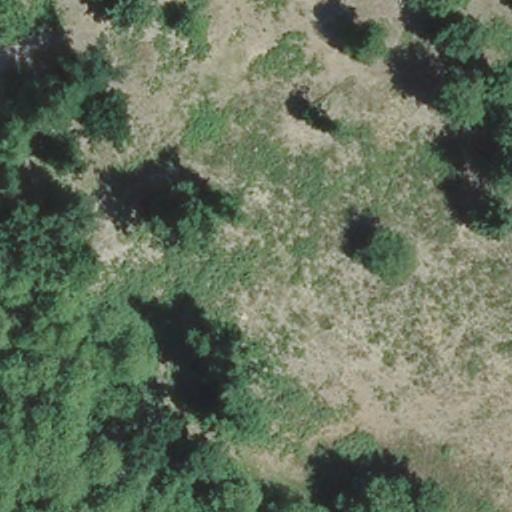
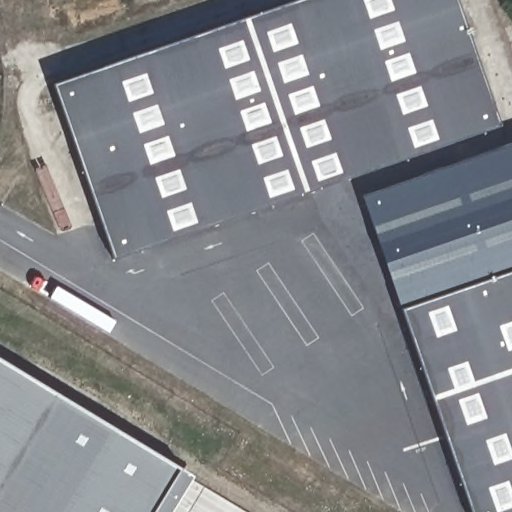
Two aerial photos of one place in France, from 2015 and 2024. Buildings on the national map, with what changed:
new [(54,84),(297,0),(454,0),(497,124),(113,258),(54,84)]
new [(475,512),(406,306),(372,195),(512,146),(512,512),(475,512)]
new [(174,512),(0,512),(0,355),(196,474),(174,512)]

